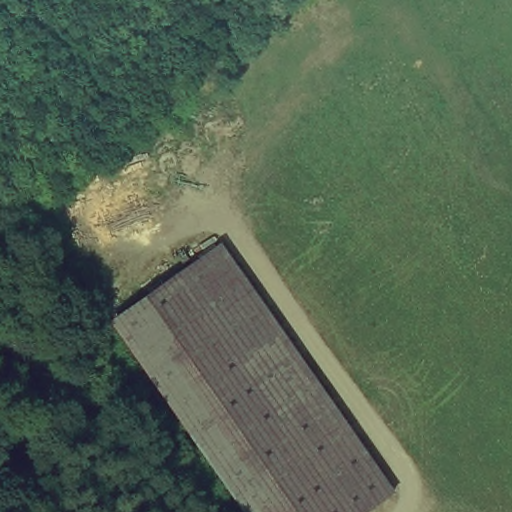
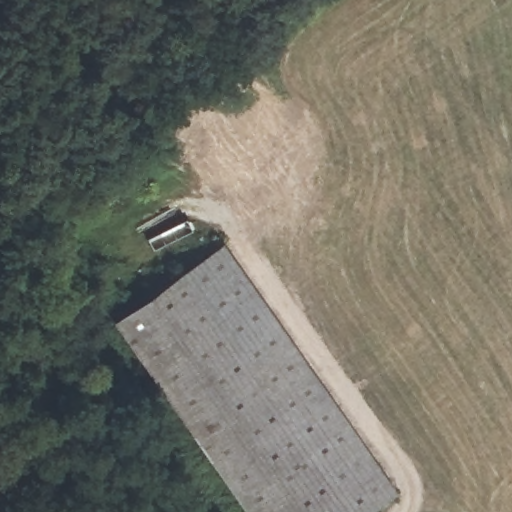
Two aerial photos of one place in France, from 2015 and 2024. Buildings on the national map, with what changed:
unchanged [(224,243),(395,489),(361,512),(249,512),(114,315),(224,243)]

